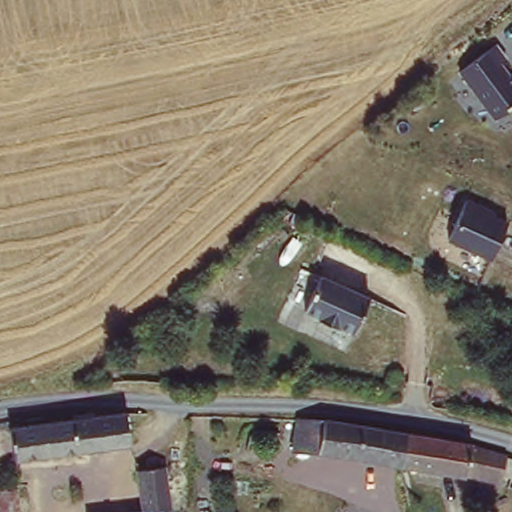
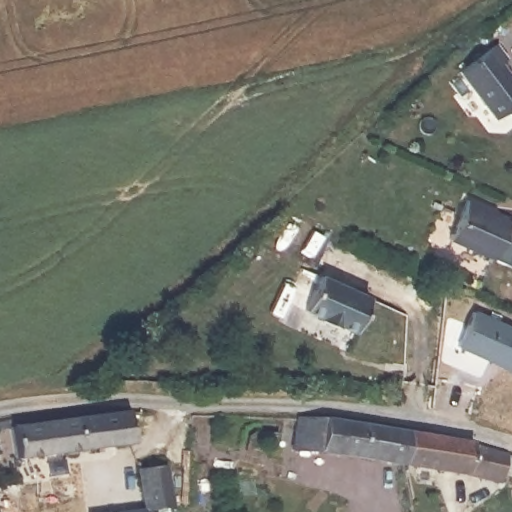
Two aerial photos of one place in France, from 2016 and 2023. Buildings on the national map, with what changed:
unchanged [(457,73),(496,45),(505,59),(500,63),(512,79),(512,106),(492,120),(457,73)]
unchanged [(464,199),(506,219),(489,262),(447,243),(464,199)]
unchanged [(371,304),(358,337),(338,328),(337,332),(320,324),(321,322),(306,314),(321,282),(371,304)]
new [(512,329),(512,377),(455,348),(474,312),(512,329)]
unchanged [(127,445),(15,457),(12,427),(125,416),(127,445)]
unchanged [(321,448),(295,446),(296,416),(330,417),(348,419),(373,424),(405,429),(400,461),(321,448)]
unchanged [(496,478),(400,461),(405,429),(459,439),(485,446),(501,449),(496,478)]
unchanged [(142,468),(151,467),(150,459),(169,457),(170,464),(176,504),(149,509),(150,512),(95,512),(95,510),(147,502),(142,468)]
unchanged [(0,495),(14,493),(16,512),(0,512),(0,495)]

